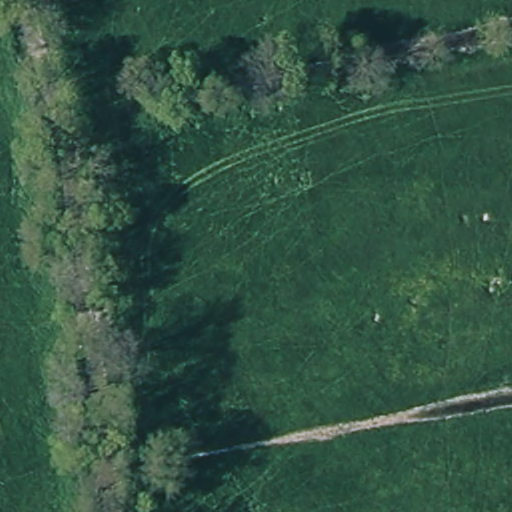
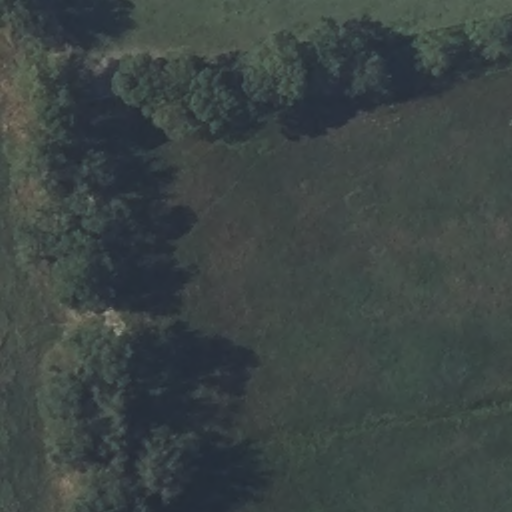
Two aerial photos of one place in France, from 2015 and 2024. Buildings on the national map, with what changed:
[]

